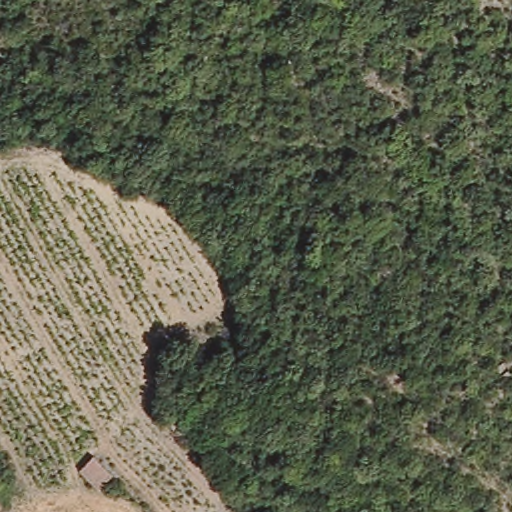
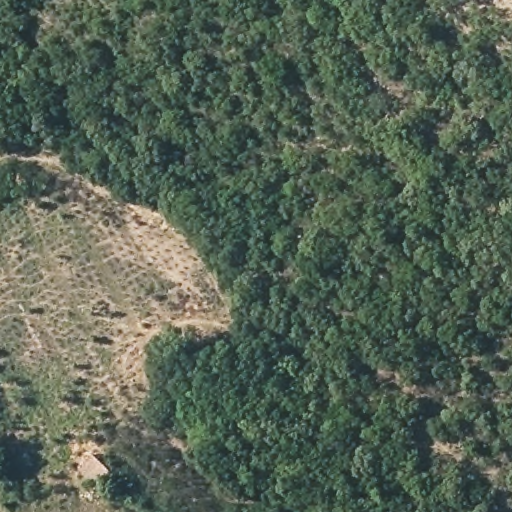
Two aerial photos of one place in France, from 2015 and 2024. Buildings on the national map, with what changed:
unchanged [(97,484),(81,462),(96,451),(112,475),(97,484)]

